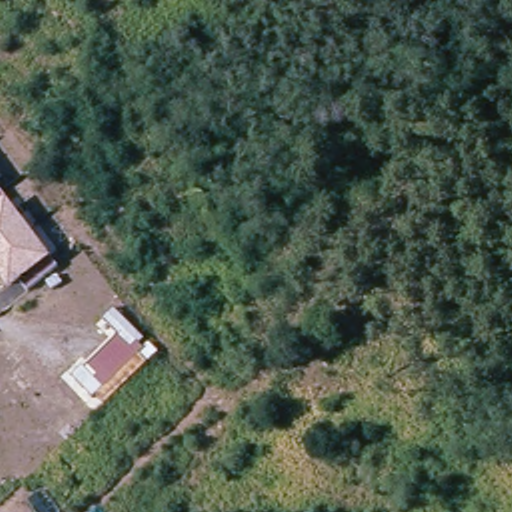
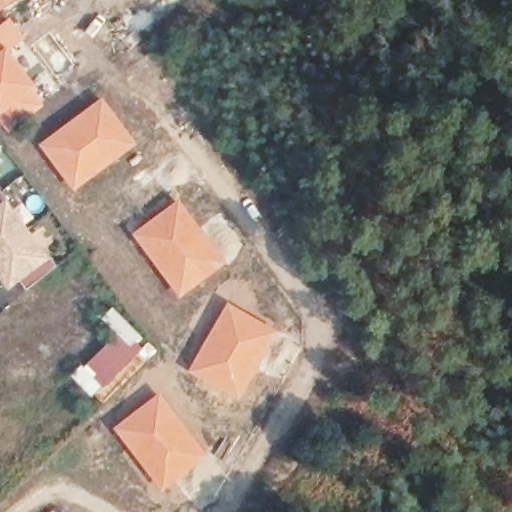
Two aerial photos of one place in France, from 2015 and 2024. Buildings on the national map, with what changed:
new [(24,0),(0,17),(0,0),(24,0)]
new [(9,17),(24,38),(9,49),(45,104),(7,131),(0,121),(0,24),(9,17)]
new [(102,96),(137,144),(73,192),(38,143),(102,96)]
unchanged [(1,193),(0,194),(0,191),(1,193)]
unchanged [(1,193),(10,205),(9,206),(28,232),(0,252),(0,194),(1,193)]
new [(178,199),(225,263),(178,298),(131,232),(178,199)]
unchanged [(17,281),(9,288),(0,275),(0,252),(28,232),(47,258),(49,256),(58,269),(27,294),(17,281)]
new [(226,302),(277,330),(238,400),(188,371),(226,302)]
unchanged [(81,365),(85,369),(119,337),(101,319),(114,307),(148,343),(91,398),(70,376),(81,365)]
new [(159,392),(208,456),(161,491),(112,427),(159,392)]

